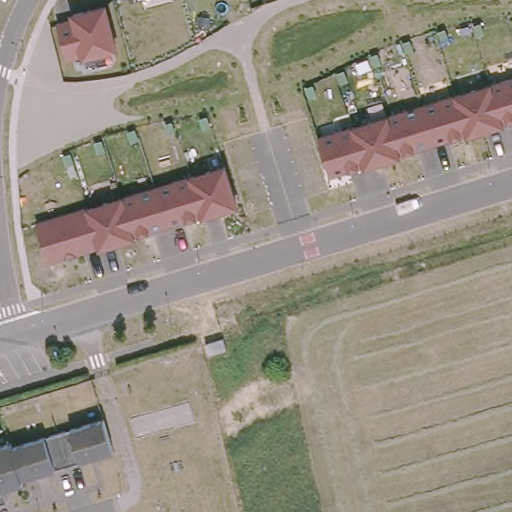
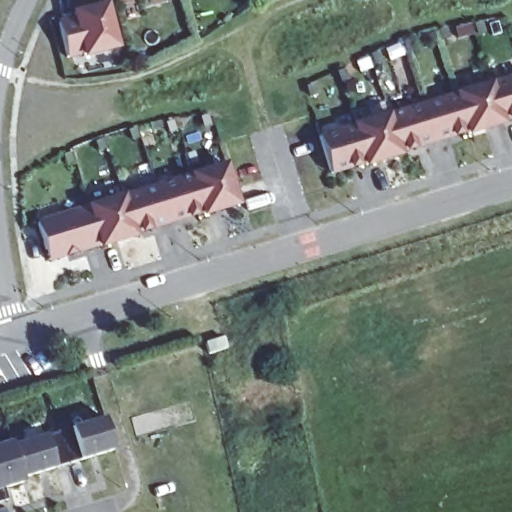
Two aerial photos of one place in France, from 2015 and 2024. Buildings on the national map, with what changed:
unchanged [(72,17),(71,12),(108,4),(119,50),(82,58),(81,54),(65,58),(56,21),(72,17)]
unchanged [(387,114),(454,94),(490,83),(512,76),(512,122),(505,124),(468,136),(401,156),(364,168),(330,176),(320,137),(351,125),(387,114)]
unchanged [(122,196),(188,176),(226,165),(239,206),(202,218),(135,237),(100,248),(49,262),(37,221),(86,207),(122,196)]
unchanged [(8,432),(27,426),(98,402),(108,434),(30,459),(18,463),(20,468),(0,475),(0,429),(6,427),(8,432)]
unchanged [(0,487),(0,478),(3,486),(0,487)]

